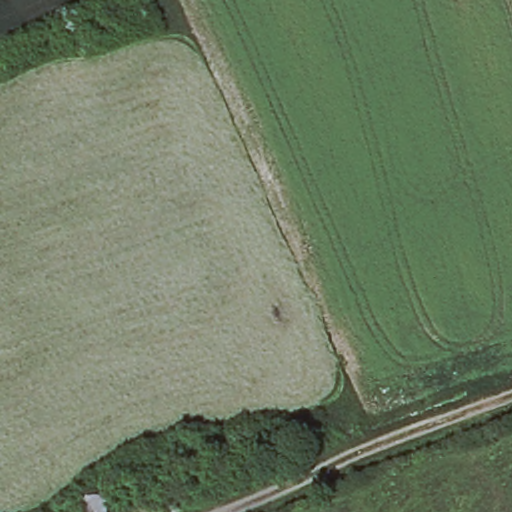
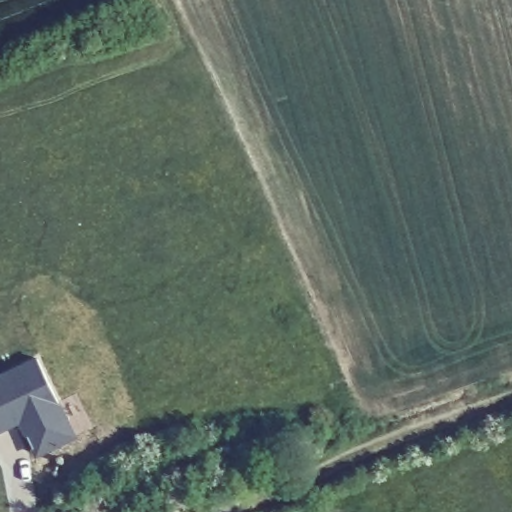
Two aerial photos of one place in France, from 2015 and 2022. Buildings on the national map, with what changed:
new [(81,426),(41,450),(15,411),(0,421),(0,355),(27,338),(81,426)]
unchanged [(80,487),(106,495),(107,512),(79,512),(80,487)]

